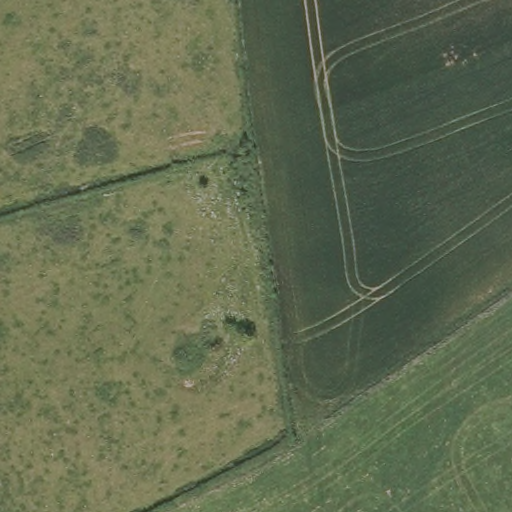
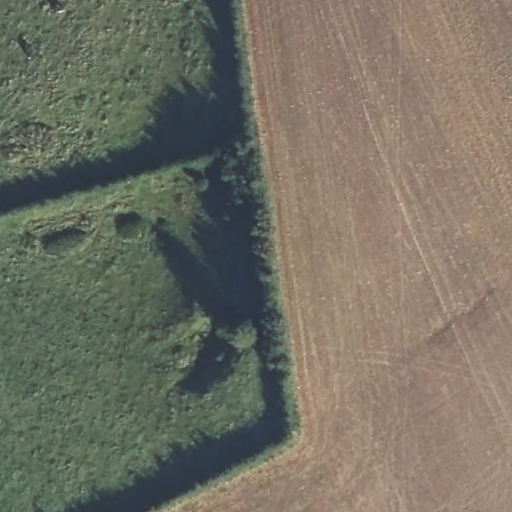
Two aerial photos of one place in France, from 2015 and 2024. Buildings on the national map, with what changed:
[]

